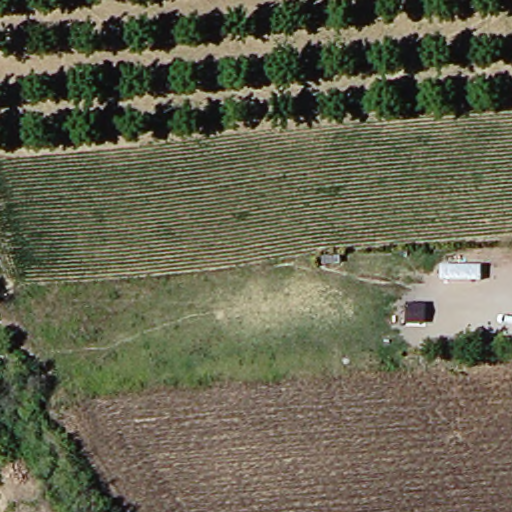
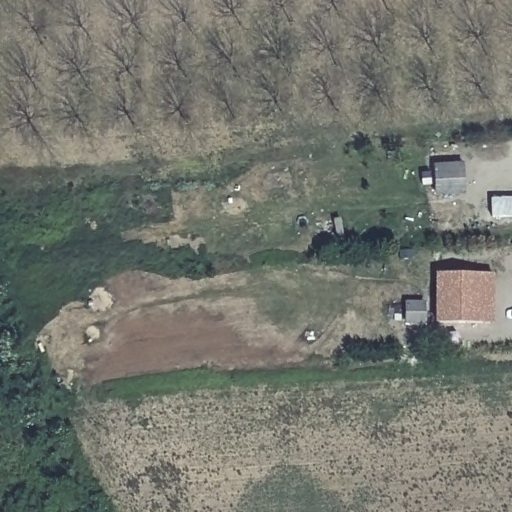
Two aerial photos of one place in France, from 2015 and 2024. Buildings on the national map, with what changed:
new [(493,324),(435,325),(436,274),(496,274),(493,324)]

